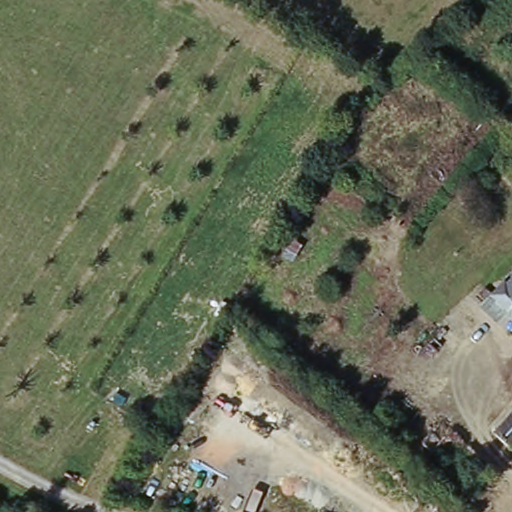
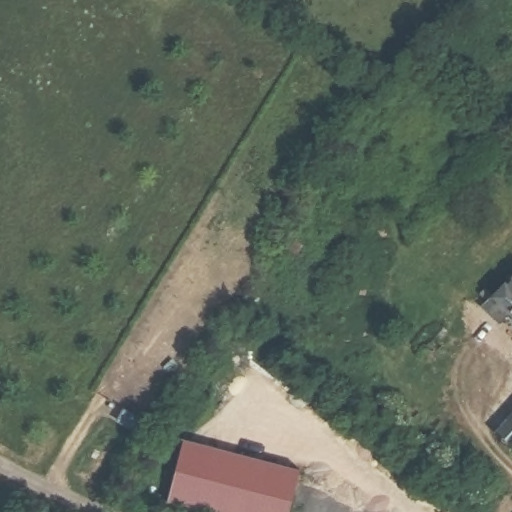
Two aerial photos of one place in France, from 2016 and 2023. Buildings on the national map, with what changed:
unchanged [(503,314),(497,320),(488,310),(512,286),(512,324),(503,314)]
unchanged [(485,431),(512,403),(512,449),(509,452),(485,431)]
demolished [(131,423),(146,432),(118,480),(103,471),(131,423)]
new [(299,470),(288,512),(203,512),(168,503),(184,440),(299,470)]

